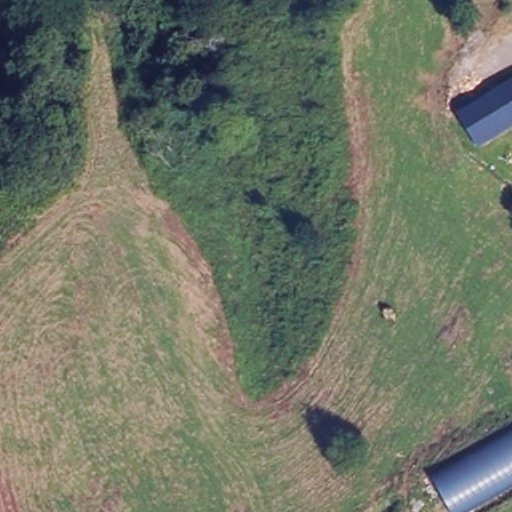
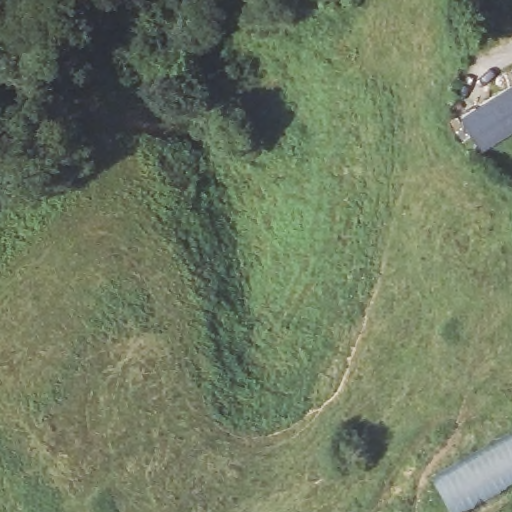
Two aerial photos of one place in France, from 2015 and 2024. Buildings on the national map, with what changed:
unchanged [(512,120),(488,133),(477,139),(460,109),(476,100),(512,79),(512,120)]
unchanged [(451,512),(427,466),(512,421),(512,480),(456,512),(451,512)]

